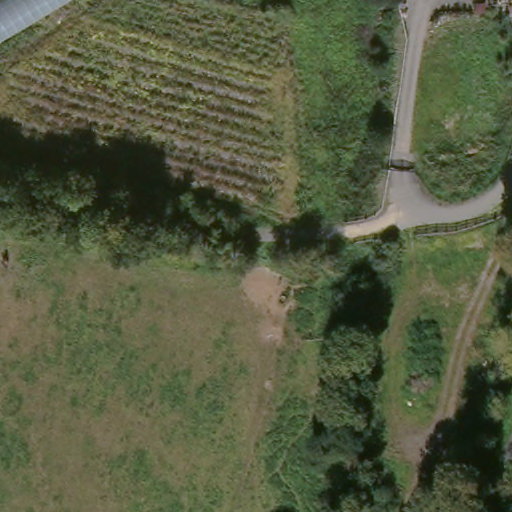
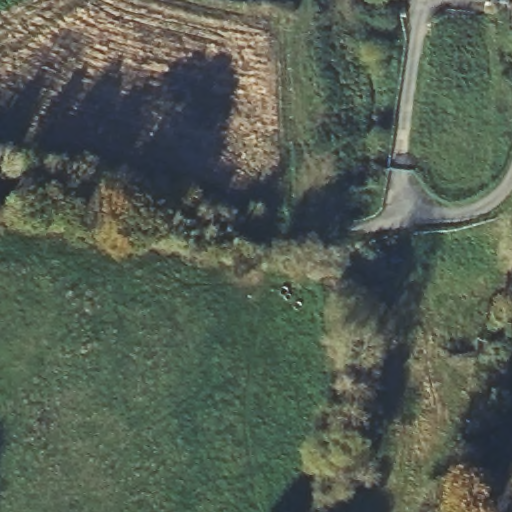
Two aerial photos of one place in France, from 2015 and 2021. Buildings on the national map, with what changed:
demolished [(0,52),(0,0),(87,0),(0,52)]
unchanged [(512,23),(491,25),(489,0),(512,0),(512,23)]

